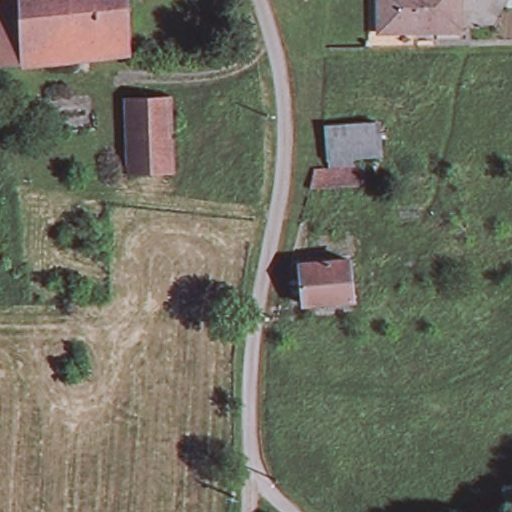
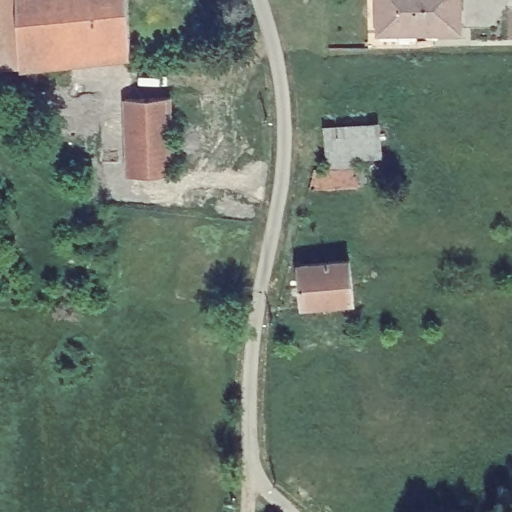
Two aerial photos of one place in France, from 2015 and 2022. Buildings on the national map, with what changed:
unchanged [(102,56),(0,65),(0,0),(96,0),(102,56)]
unchanged [(133,51),(133,53),(102,56),(96,0),(131,0),(133,51)]
unchanged [(383,30),(382,0),(464,0),(464,29),(383,30)]
unchanged [(125,179),(123,123),(123,101),(169,101),(170,122),(170,178),(125,179)]
unchanged [(331,124),(381,125),(381,156),(330,156),(331,124)]
unchanged [(361,187),(311,189),(316,172),(361,169),(361,187)]
unchanged [(351,259),(354,300),(304,305),(301,263),(351,259)]

